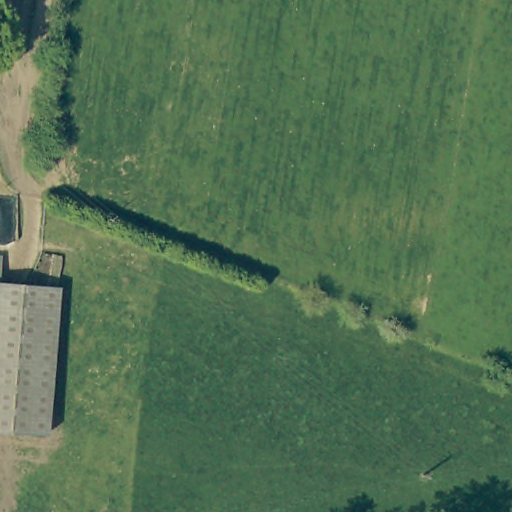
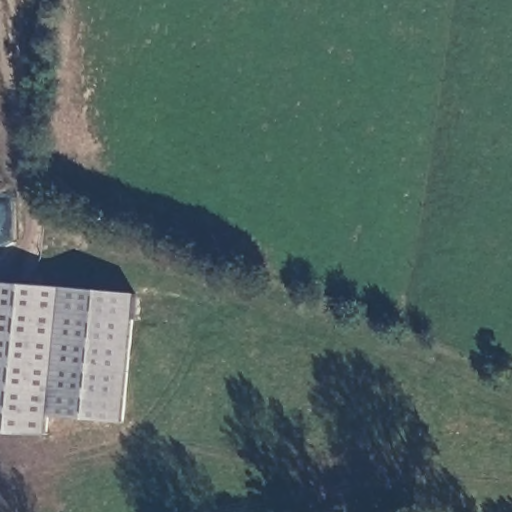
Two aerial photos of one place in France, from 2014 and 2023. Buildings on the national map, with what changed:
unchanged [(3,281),(0,281),(0,256),(6,256),(3,281)]
unchanged [(62,287),(50,443),(0,438),(0,281),(3,281),(62,287)]
new [(62,287),(134,292),(122,423),(52,415),(62,287)]

